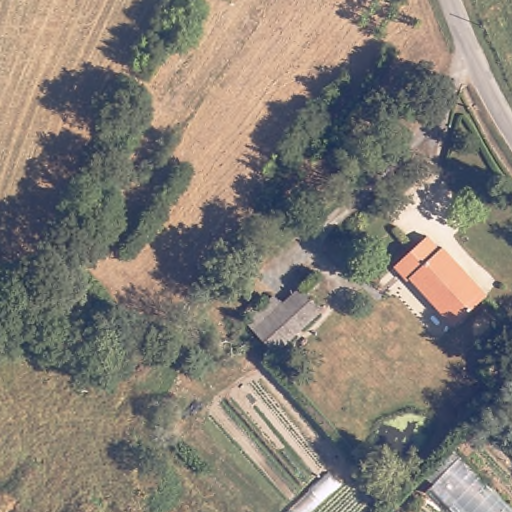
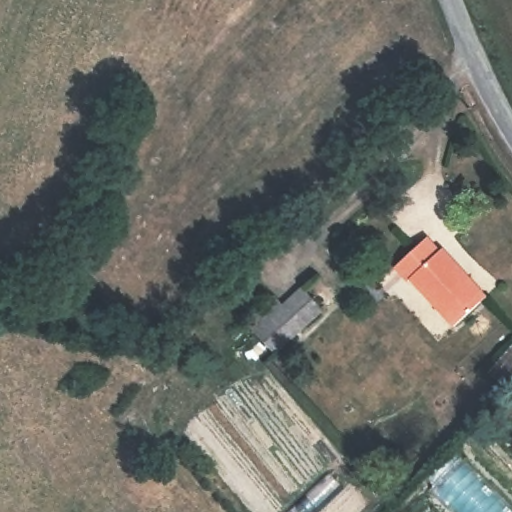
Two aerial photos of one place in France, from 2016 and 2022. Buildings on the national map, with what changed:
unchanged [(459,321),(415,273),(413,276),(400,262),(432,231),(445,245),(447,242),(474,272),(492,291),(487,295),(459,321)]
unchanged [(328,305),(280,348),(260,327),(251,317),(280,292),(288,301),(307,282),(328,305)]
unchanged [(512,512),(455,512),(430,488),(461,457),(512,506),(512,512)]

